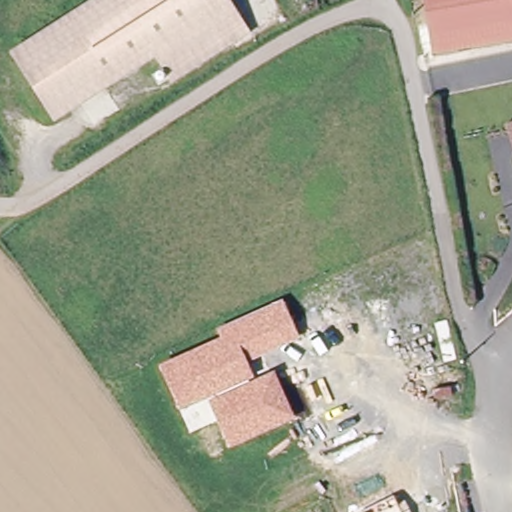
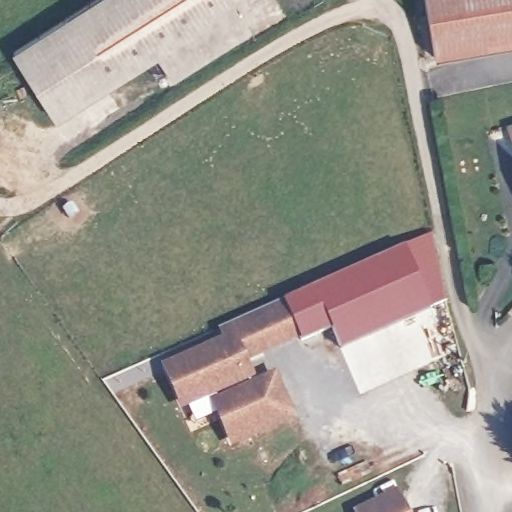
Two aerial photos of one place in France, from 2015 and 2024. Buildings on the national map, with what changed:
unchanged [(93,0),(231,0),(248,27),(172,80),(156,58),(55,121),(10,52),(93,0)]
unchanged [(512,44),(433,56),(424,0),(512,0),(512,44)]
unchanged [(512,121),(512,123),(511,121),(512,121)]
new [(404,243),(432,232),(446,301),(428,308),(341,349),(331,329),(301,339),(282,298),(404,243)]
unchanged [(220,337),(216,328),(282,298),(301,339),(249,363),(256,379),(274,371),(296,419),(230,447),(210,399),(180,412),(160,365),(220,337)]
unchanged [(396,494),(404,512),(358,512),(357,511),(396,494)]

